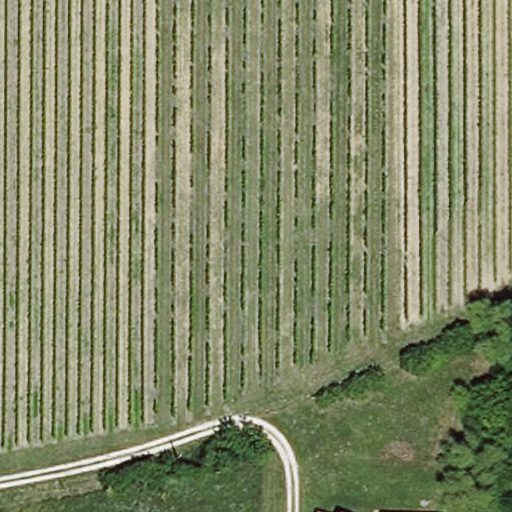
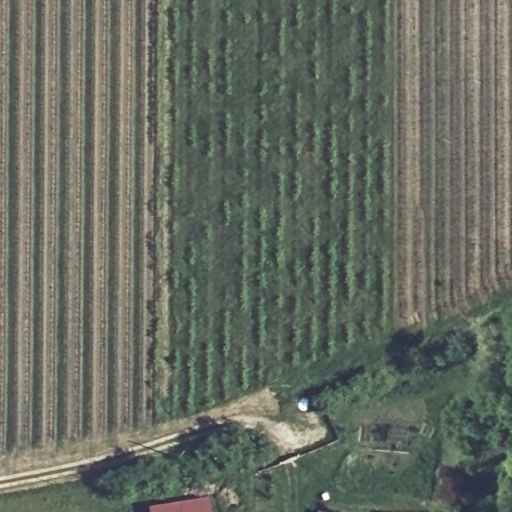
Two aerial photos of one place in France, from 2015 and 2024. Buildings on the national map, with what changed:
new [(148,509),(208,500),(210,512),(148,512),(148,509)]

